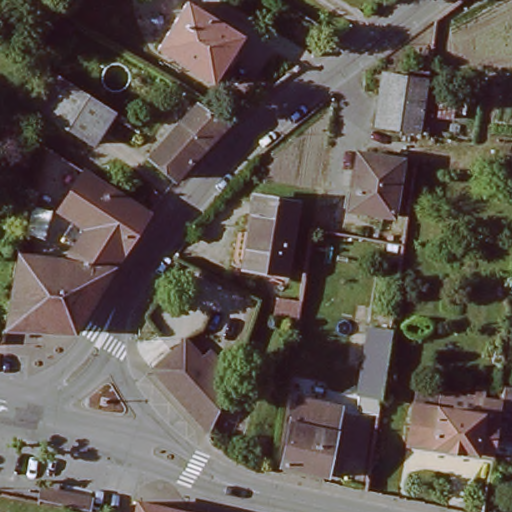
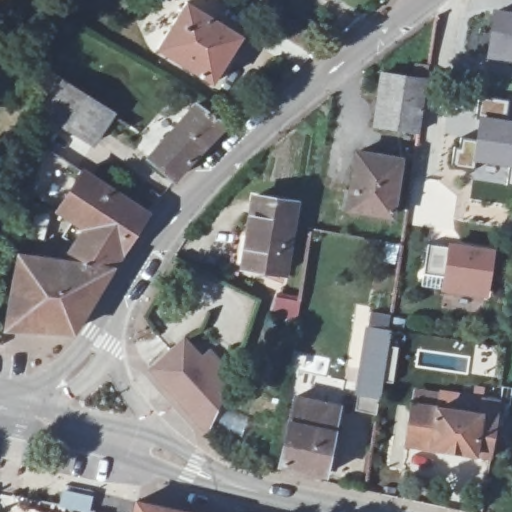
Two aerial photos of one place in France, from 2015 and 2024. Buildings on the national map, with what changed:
unchanged [(187,1),(243,36),(214,84),(158,49),(187,1)]
new [(512,6),(512,59),(498,58),(500,6),(512,6)]
unchanged [(50,70),(113,108),(91,143),(43,114),(50,70)]
unchanged [(419,133),(374,127),(381,74),(426,81),(419,133)]
new [(506,184),(471,179),(472,168),(451,165),(454,145),(458,146),(459,137),(474,139),(479,96),(508,100),(506,117),(512,119),(512,185),(506,184)]
unchanged [(153,157),(164,144),(198,104),(228,125),(203,152),(179,179),(153,157)]
unchanged [(401,160),(392,217),(349,211),(356,153),(401,160)]
unchanged [(64,258),(73,243),(70,242),(83,223),(54,207),(79,166),(145,207),(109,263),(64,258)]
unchanged [(252,213),(255,197),(296,203),(294,222),(286,271),(244,266),(252,213)]
new [(453,245),(454,240),(501,247),(495,296),(446,290),(448,272),(427,269),(431,242),(453,245)]
unchanged [(109,263),(71,322),(67,327),(2,325),(14,252),(64,258),(109,263)]
unchanged [(360,390),(371,321),(390,323),(379,392),(360,390)]
unchanged [(196,358),(204,350),(218,365),(216,380),(228,392),(196,423),(148,373),(181,342),(196,358)]
unchanged [(481,458),(396,446),(402,406),(404,391),(429,395),(489,403),(481,458)]
unchanged [(266,460),(279,392),(324,402),(310,471),(266,460)]
unchanged [(344,407),(329,476),(310,471),(324,402),(344,407)]
unchanged [(103,512),(91,512),(88,511),(62,506),(16,497),(20,484),(64,494),(91,499),(105,502),(103,512)]
unchanged [(131,497),(196,512),(128,512),(131,497)]

